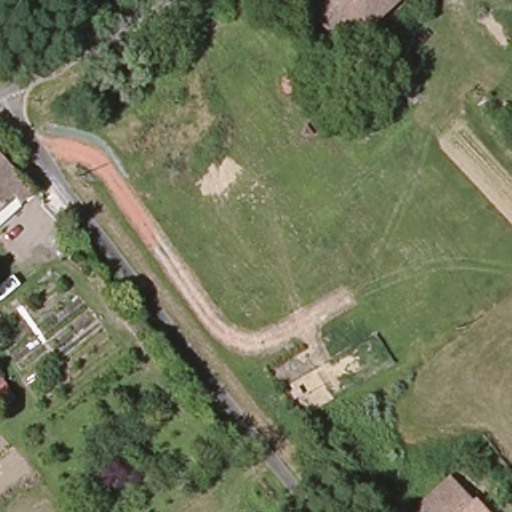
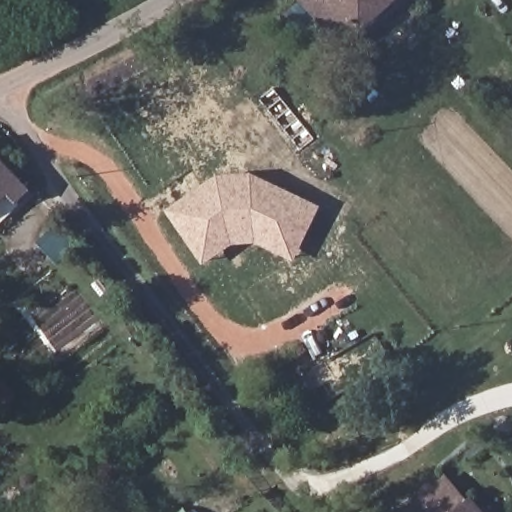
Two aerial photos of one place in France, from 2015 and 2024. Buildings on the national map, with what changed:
unchanged [(345,51),(300,0),(402,0),(345,51)]
unchanged [(0,229),(0,147),(40,194),(25,205),(29,208),(0,229)]
new [(217,175),(252,172),(321,206),(295,262),(255,243),(235,244),(205,264),(167,210),(217,175)]
unchanged [(469,503),(480,496),(493,512),(412,512),(450,479),(469,503)]

